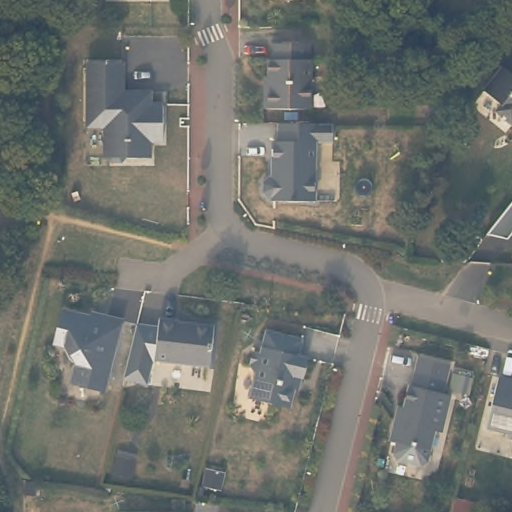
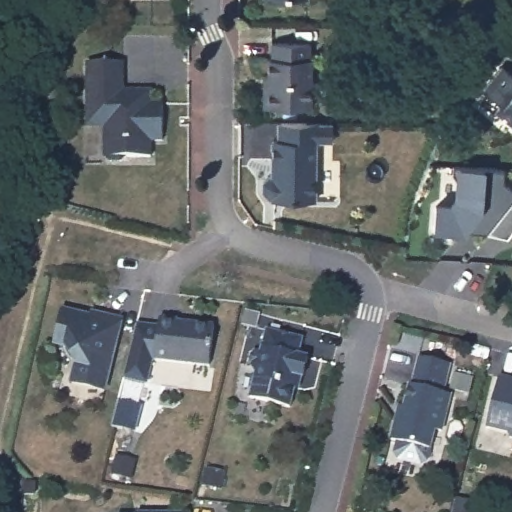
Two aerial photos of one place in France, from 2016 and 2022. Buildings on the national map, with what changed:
unchanged [(35,24),(32,41),(7,37),(11,20),(35,24)]
unchanged [(273,55),(277,55),(277,38),(313,39),(313,55),(316,55),(316,104),(270,103),(270,82),(270,70),(273,70),(273,55)]
unchanged [(87,121),(87,61),(112,61),(122,61),(122,62),(122,93),(132,93),(135,90),(150,90),(150,102),(162,102),(162,140),(150,140),(150,142),(150,156),(125,156),(121,160),(109,160),(105,156),(105,140),(105,126),(87,126),(87,121)]
unchanged [(503,69),(512,76),(512,126),(502,117),(506,111),(483,92),(503,69)]
unchanged [(284,151),(284,134),(338,134),(338,151),(321,151),(321,211),(278,211),(278,210),(276,210),(270,204),(270,192),(276,186),(278,186),(278,151),(284,151)]
new [(505,182),(512,189),(512,203),(489,232),(467,231),(466,230),(436,231),(437,200),(451,201),(455,197),(456,181),(453,175),(453,166),(457,166),(487,167),(505,170),(505,182)]
unchanged [(508,239),(487,235),(512,203),(512,233),(508,239)]
unchanged [(111,385),(78,377),(82,358),(74,342),(64,340),(72,306),(100,313),(101,309),(112,312),(128,315),(111,385)]
unchanged [(158,328),(160,318),(178,320),(177,321),(214,325),(209,367),(152,361),(147,384),(125,378),(126,373),(137,325),(158,328)]
unchanged [(312,328),(309,345),(318,347),(313,367),(308,365),(301,397),(261,388),(266,367),(267,366),(261,355),(265,340),(272,342),(277,320),(312,328)]
unchanged [(402,409),(407,387),(410,388),(417,360),(447,366),(441,395),(448,397),(440,433),(433,432),(426,463),(420,467),(397,461),(393,455),(396,444),(390,442),(395,420),(397,408),(402,409)]
unchanged [(510,432),(490,428),(502,377),(512,380),(512,436),(510,432)]
unchanged [(135,462),(132,478),(114,475),(117,459),(135,462)]
unchanged [(142,510),(180,510),(190,510),(190,512),(142,512),(142,510)]

